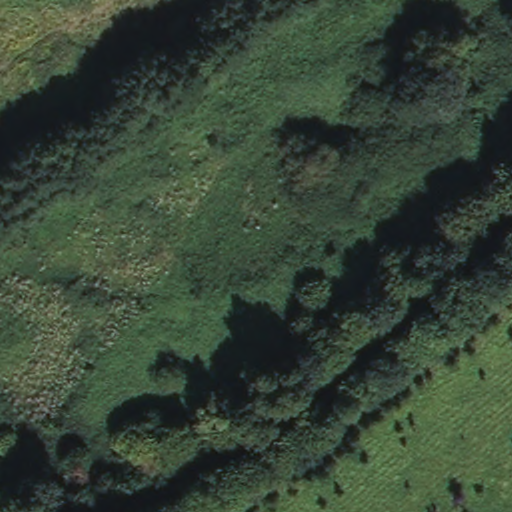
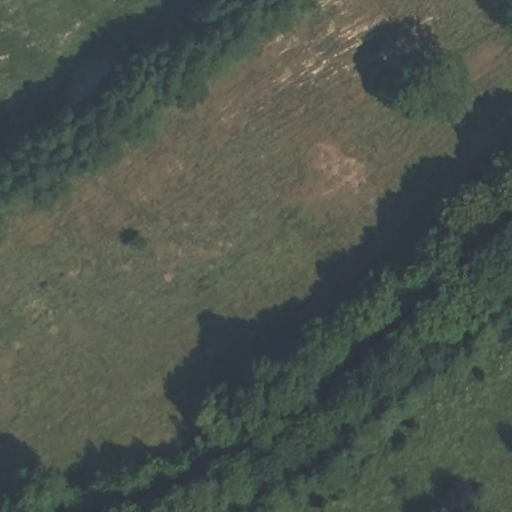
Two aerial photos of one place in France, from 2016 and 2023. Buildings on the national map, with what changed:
[]

